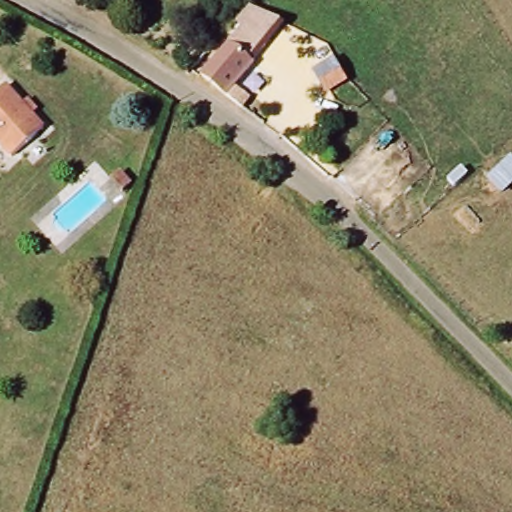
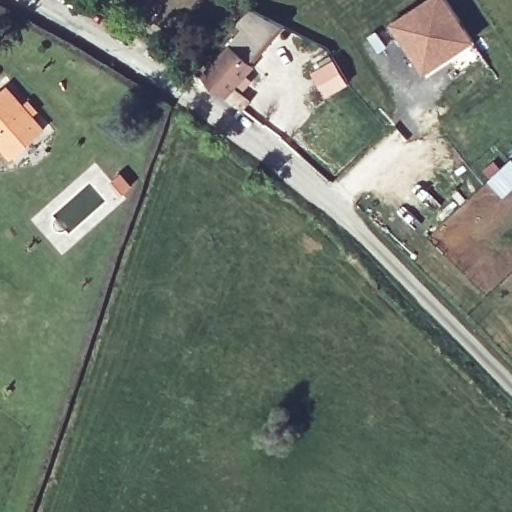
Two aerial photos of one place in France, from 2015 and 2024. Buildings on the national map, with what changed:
new [(389,21),(423,0),(443,0),(473,42),(421,74),(389,21)]
unchanged [(230,99),(199,76),(246,31),(270,53),(230,99)]
unchanged [(0,148),(0,92),(4,89),(42,133),(10,160),(0,148)]
unchanged [(119,169),(131,183),(119,193),(104,179),(119,169)]

